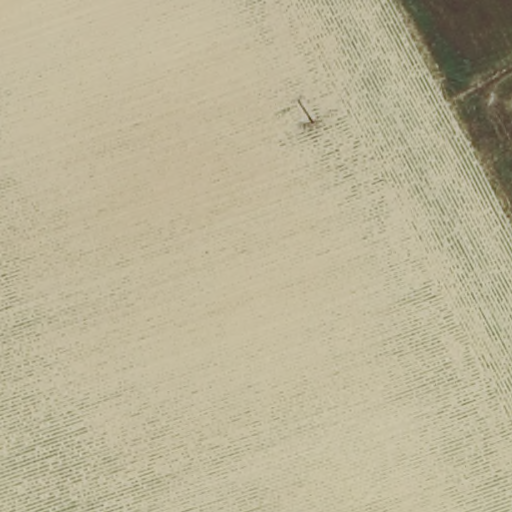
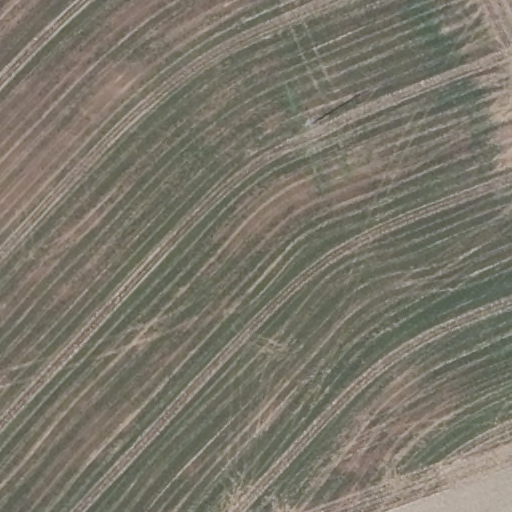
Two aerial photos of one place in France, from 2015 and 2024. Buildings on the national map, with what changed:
[]

